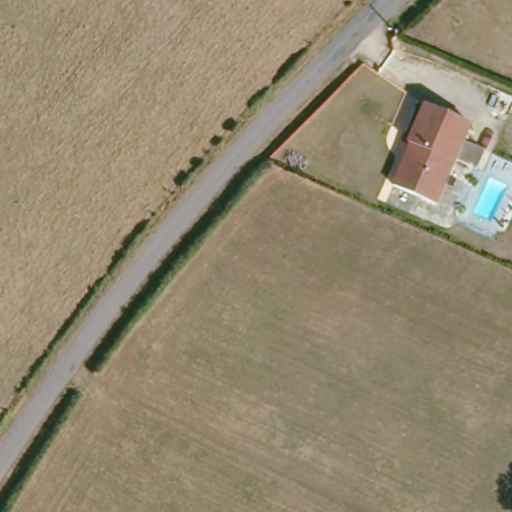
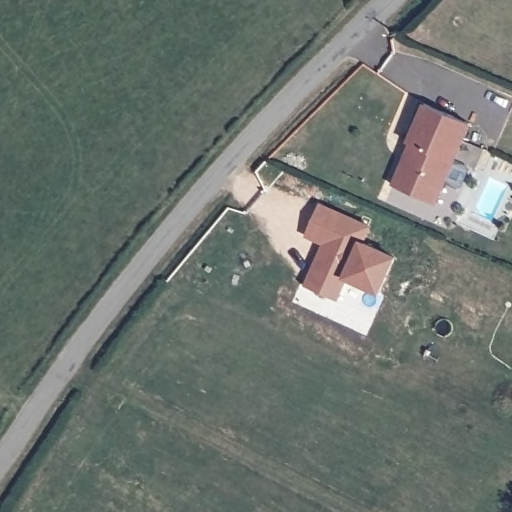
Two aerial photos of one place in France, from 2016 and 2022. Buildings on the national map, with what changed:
unchanged [(425,100),(472,121),(435,202),(391,183),(403,155),(407,157),(415,141),(408,139),(425,100)]
new [(305,287),(323,244),(307,235),(321,202),(372,226),(367,242),(399,256),(381,294),(347,279),(339,300),(305,287)]

